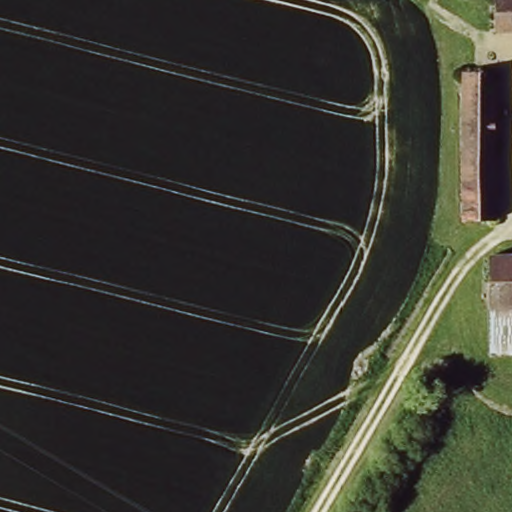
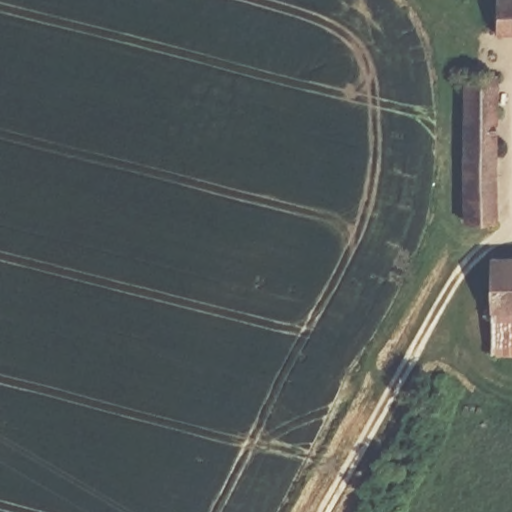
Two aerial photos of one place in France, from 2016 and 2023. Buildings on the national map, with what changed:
unchanged [(491,31),(490,0),(512,0),(512,30),(491,31)]
unchanged [(501,226),(465,228),(459,81),(493,80),(501,226)]
unchanged [(512,260),(512,310),(479,312),(478,261),(512,260)]
unchanged [(512,310),(512,354),(482,355),(479,312),(512,310)]

